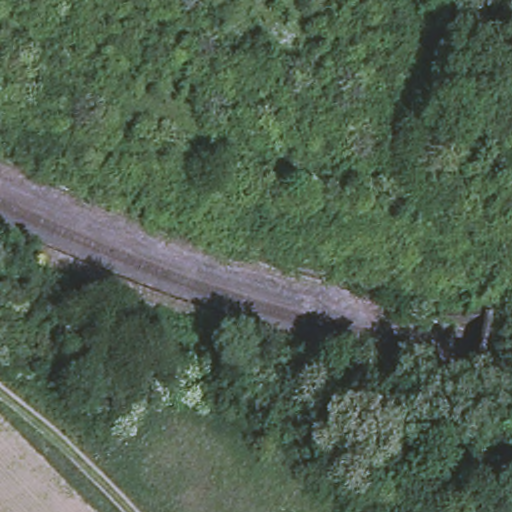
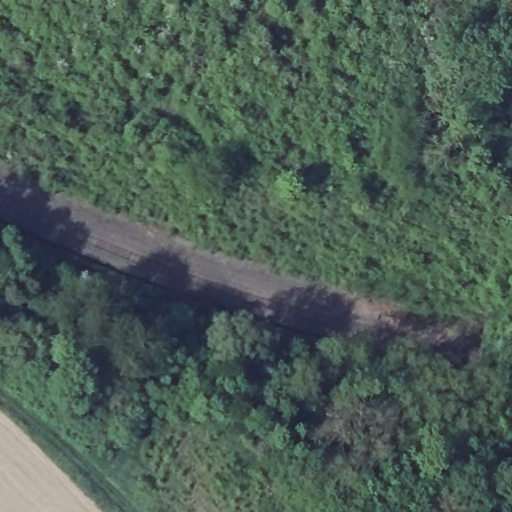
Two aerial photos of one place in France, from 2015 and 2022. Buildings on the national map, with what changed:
unchanged [(72,398),(70,398),(58,393),(56,389),(60,382),(50,378),(55,367),(60,363),(67,366),(70,360),(87,367),(86,375),(75,397),(72,398)]

